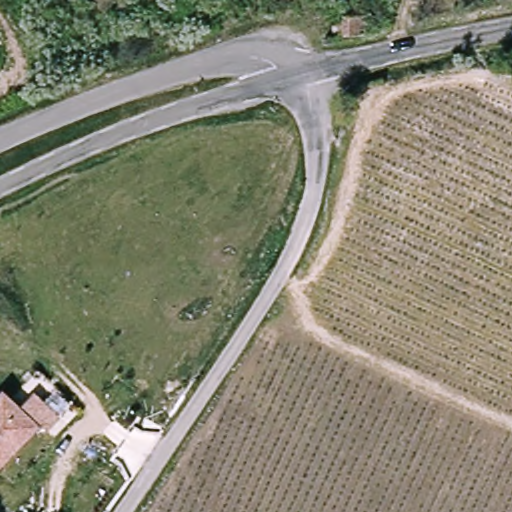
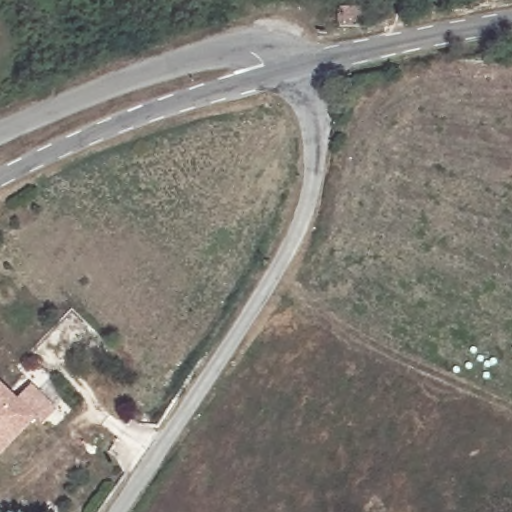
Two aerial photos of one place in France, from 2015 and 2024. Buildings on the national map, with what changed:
unchanged [(334,27),(332,8),(358,4),(360,25),(334,27)]
unchanged [(20,401),(34,387),(60,412),(45,428),(36,421),(0,458),(0,386),(2,384),(20,401)]

